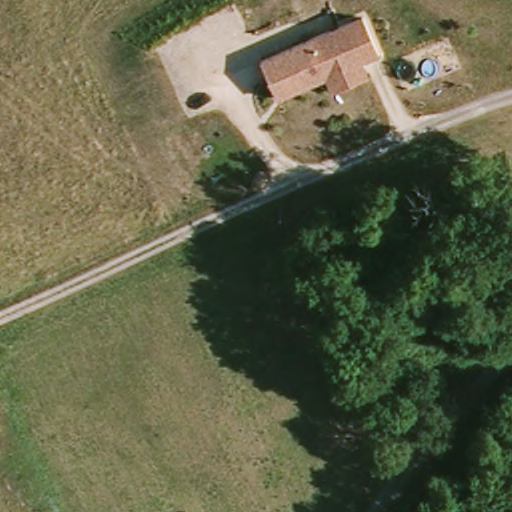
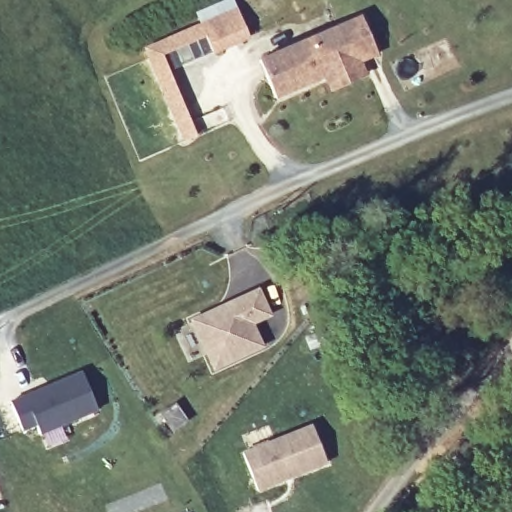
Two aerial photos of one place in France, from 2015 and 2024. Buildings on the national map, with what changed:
new [(197,22),(193,11),(219,0),(234,0),(251,38),(171,71),(198,135),(183,142),(141,47),(197,22)]
unchanged [(365,14),(381,55),(364,63),(370,76),(331,92),(325,82),(277,99),(261,58),(365,14)]
new [(270,314),(252,324),(263,348),(215,368),(193,321),(258,291),(270,314)]
new [(38,424),(25,431),(12,401),(82,371),(99,410),(42,434),(38,424)]
new [(313,424),(328,464),(257,493),(241,452),(313,424)]

